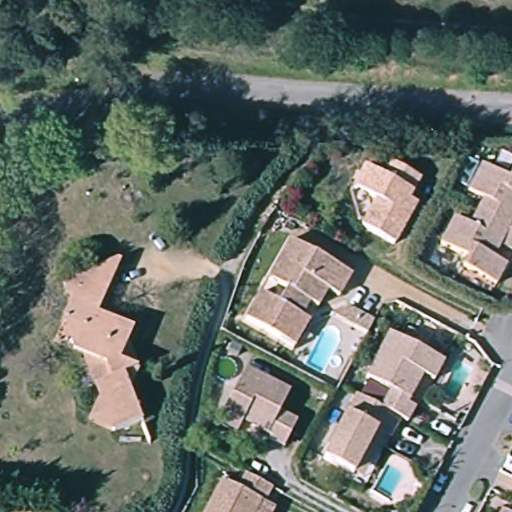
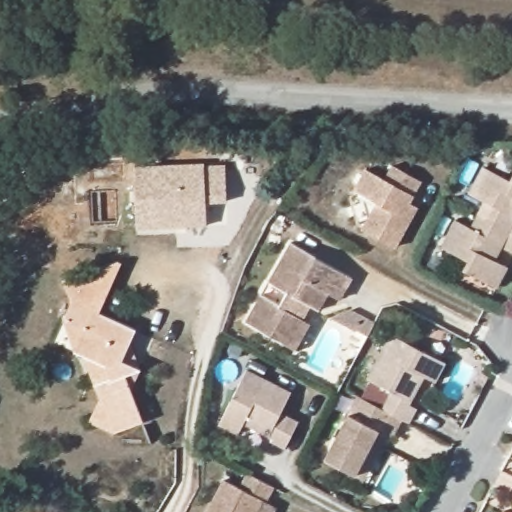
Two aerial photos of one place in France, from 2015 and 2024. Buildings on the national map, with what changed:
unchanged [(423,172),(409,199),(418,203),(397,241),(362,222),(376,195),(360,187),(371,166),(387,174),(395,158),(423,172)]
new [(137,228),(137,165),(204,162),(204,165),(225,164),(227,201),(206,202),(207,226),(137,228)]
unchanged [(481,197),(467,189),(481,163),(509,178),(512,171),(512,231),(474,211),(481,197)]
unchanged [(492,256),(506,265),(495,283),(462,264),(466,257),(439,241),(453,217),(467,225),(474,211),(512,231),(512,249),(500,242),(492,256)]
unchanged [(350,275),(338,298),(327,292),(318,307),(307,301),(299,317),(306,320),(293,344),(244,316),(260,286),(273,294),(279,283),(264,275),(282,240),(350,275)]
unchanged [(90,418),(100,397),(82,354),(75,352),(63,322),(73,302),(65,285),(121,262),(99,314),(135,330),(121,360),(139,368),(130,389),(143,421),(115,432),(92,423),(90,418)]
unchanged [(379,403),(389,385),(367,373),(390,329),(444,358),(433,377),(423,372),(408,401),(412,404),(404,417),(397,413),(379,403)]
unchanged [(291,386),(276,413),(295,423),(282,446),(266,437),(269,430),(246,417),(240,429),(220,418),(247,364),(291,386)]
unchanged [(350,470),(323,455),(357,391),(379,403),(397,413),(387,433),(382,430),(359,475),(350,470)]
unchanged [(264,494),(258,491),(247,512),(201,512),(222,473),(239,481),(246,468),(271,481),(264,494)]
unchanged [(512,493),(512,495),(511,495),(512,493)]
unchanged [(512,512),(494,512),(498,504),(512,512)]

